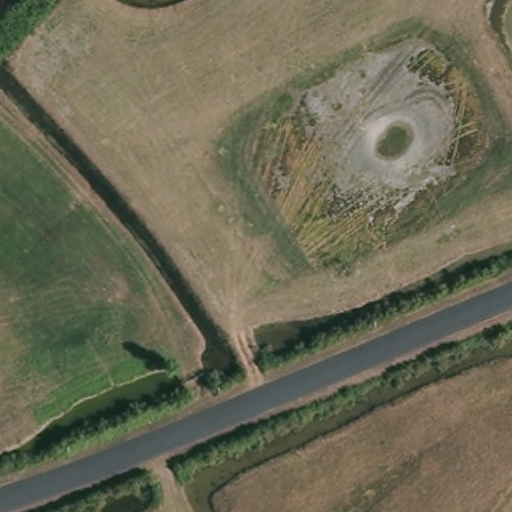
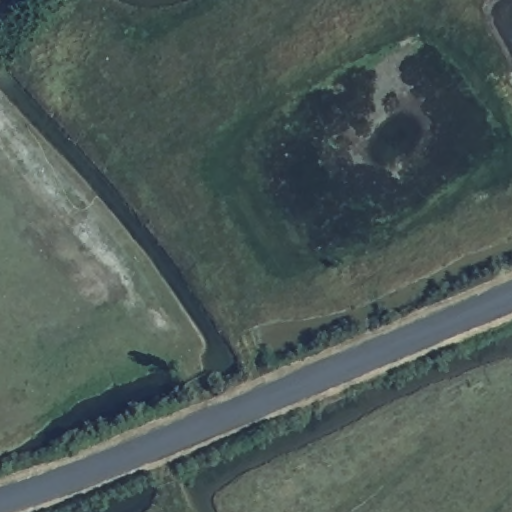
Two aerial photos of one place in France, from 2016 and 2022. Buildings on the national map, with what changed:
unchanged [(0,15),(0,0),(2,0),(8,6),(0,15)]
unchanged [(32,0),(34,0),(33,2),(32,0)]

